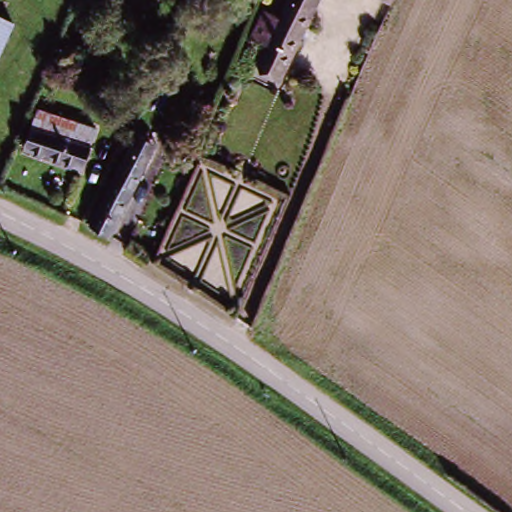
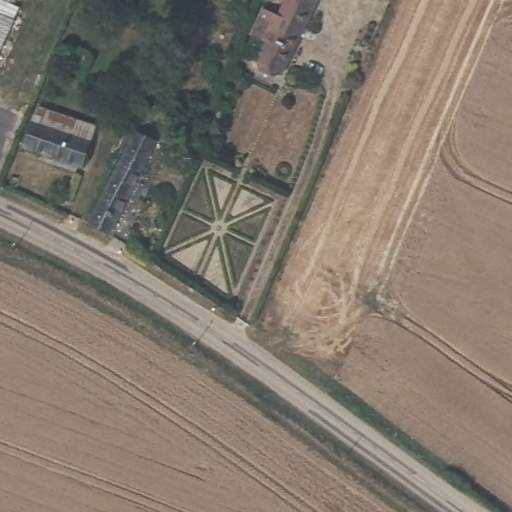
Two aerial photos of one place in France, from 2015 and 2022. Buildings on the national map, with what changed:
unchanged [(292,43),(277,77),(258,68),(267,45),(257,41),(267,14),(278,17),(285,0),(310,0),(292,43)]
unchanged [(3,61),(0,60),(0,18),(17,24),(3,61)]
unchanged [(39,110),(97,136),(82,170),(24,145),(39,110)]
unchanged [(127,124),(140,130),(133,146),(141,150),(104,230),(85,222),(127,124)]

